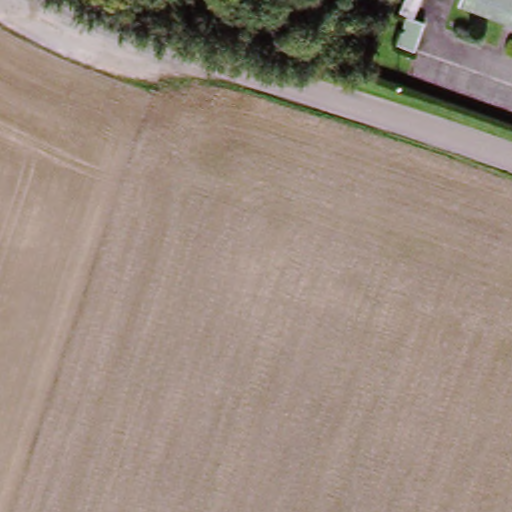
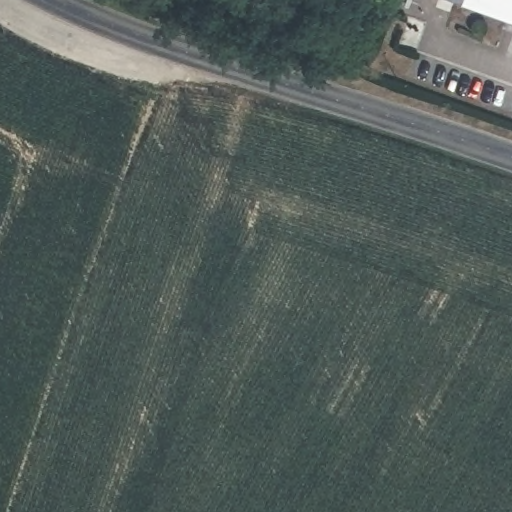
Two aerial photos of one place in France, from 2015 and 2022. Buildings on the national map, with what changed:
unchanged [(463,0),(512,0),(512,19),(463,0)]

